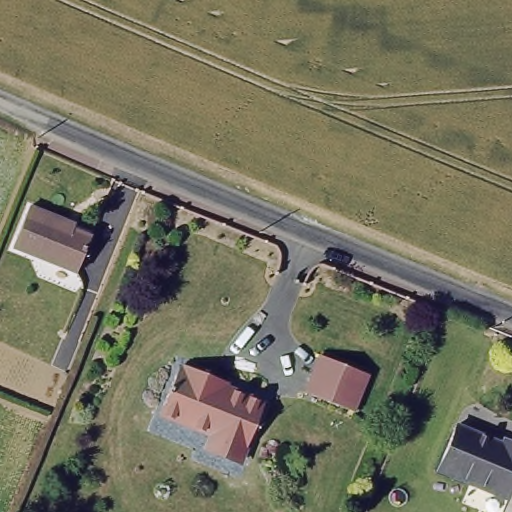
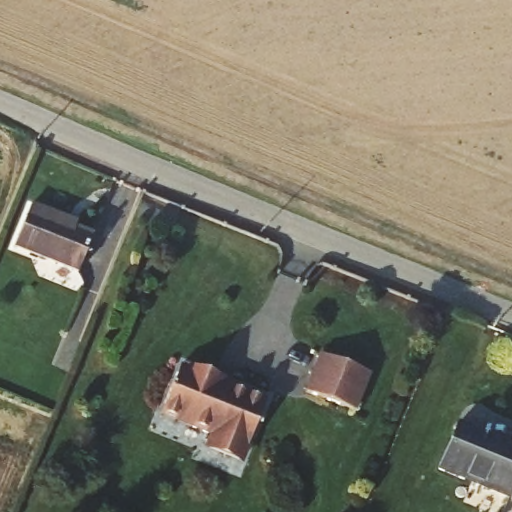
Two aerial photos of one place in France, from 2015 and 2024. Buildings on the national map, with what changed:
unchanged [(59,212),(56,220),(83,230),(68,268),(9,244),(25,200),(59,212)]
unchanged [(364,369),(351,407),(304,389),(319,351),(364,369)]
unchanged [(184,362),(186,358),(218,371),(216,378),(264,397),(242,453),(206,439),(210,431),(156,410),(176,360),(184,362)]
unchanged [(497,440),(499,435),(512,440),(512,478),(506,495),(459,477),(458,483),(431,474),(449,424),(497,440)]

